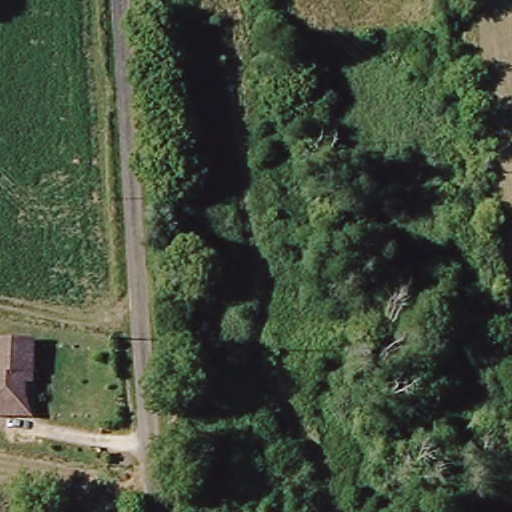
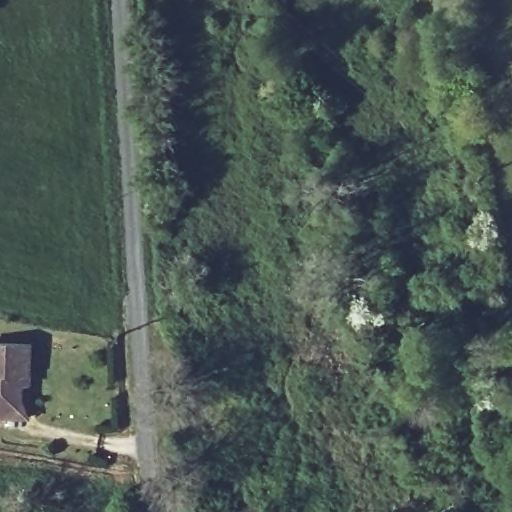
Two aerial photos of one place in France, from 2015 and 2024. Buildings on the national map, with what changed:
unchanged [(0,418),(0,342),(26,342),(26,374),(27,383),(19,384),(19,397),(26,418),(0,418)]

